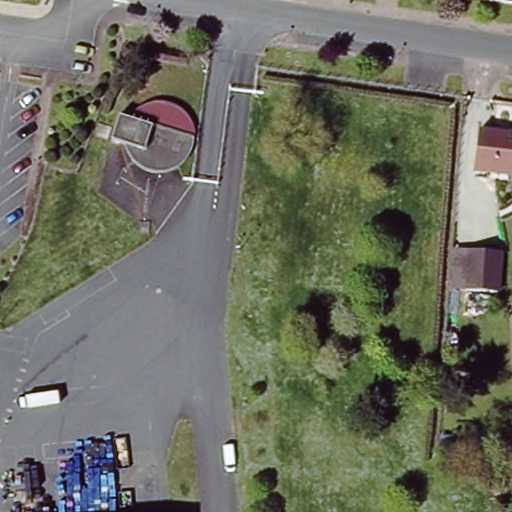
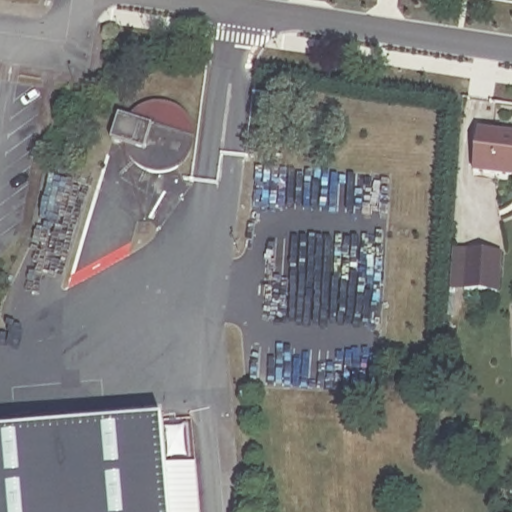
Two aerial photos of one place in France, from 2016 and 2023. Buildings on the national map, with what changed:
demolished [(28,101),(25,121),(14,119),(17,99),(28,101)]
demolished [(25,124),(20,145),(10,143),(14,122),(25,124)]
unchanged [(485,129),(512,133),(512,173),(480,169),(485,129)]
unchanged [(461,251),(493,253),(490,291),(457,290),(461,251)]
new [(0,435),(165,420),(172,512),(0,512),(0,435)]

